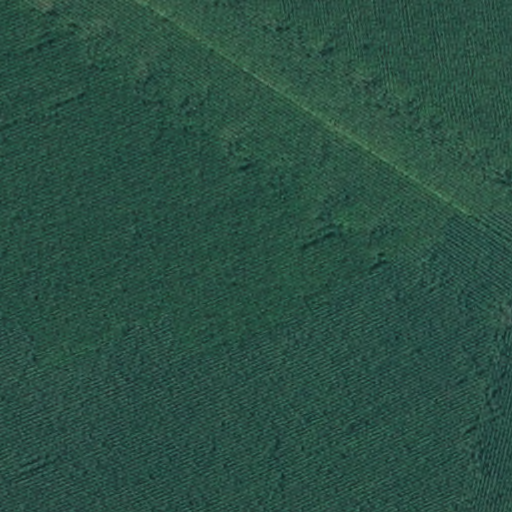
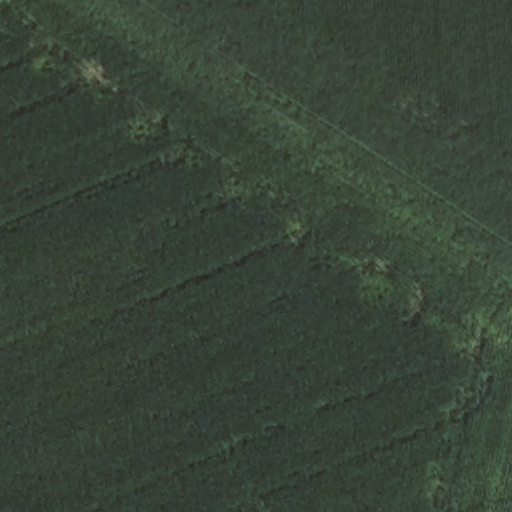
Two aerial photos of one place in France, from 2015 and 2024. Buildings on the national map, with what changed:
[]

